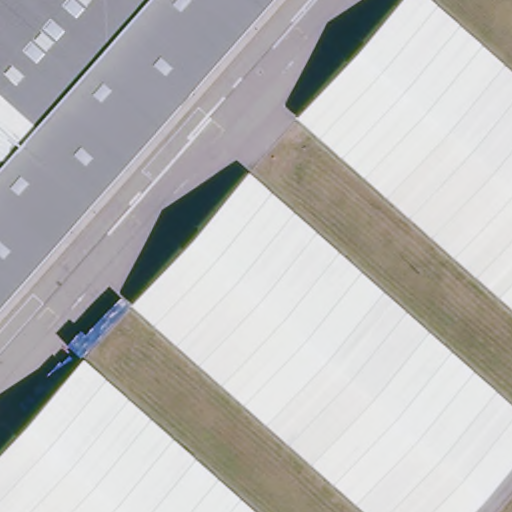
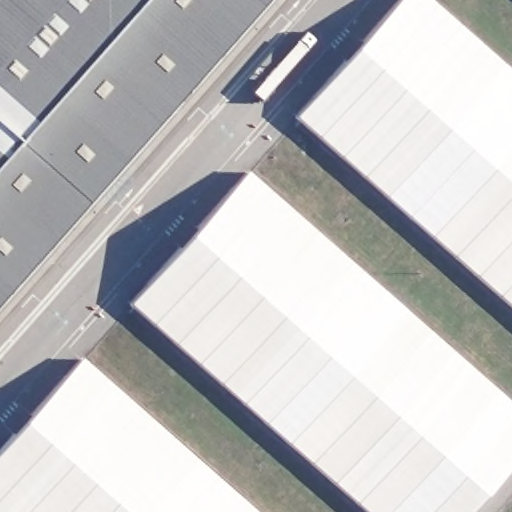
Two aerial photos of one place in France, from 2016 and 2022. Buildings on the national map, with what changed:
unchanged [(155,0),(0,172),(0,0),(155,0)]
unchanged [(274,0),(0,306),(0,172),(155,0),(274,0)]
unchanged [(427,0),(512,76),(512,312),(296,118),(401,0),(427,0)]
unchanged [(512,408),(512,467),(472,512),(365,512),(133,304),(251,174),(512,408)]
unchanged [(83,361),(253,512),(0,512),(0,454),(83,361)]

